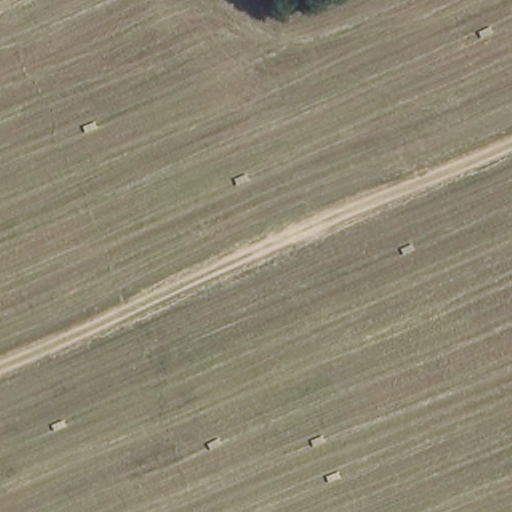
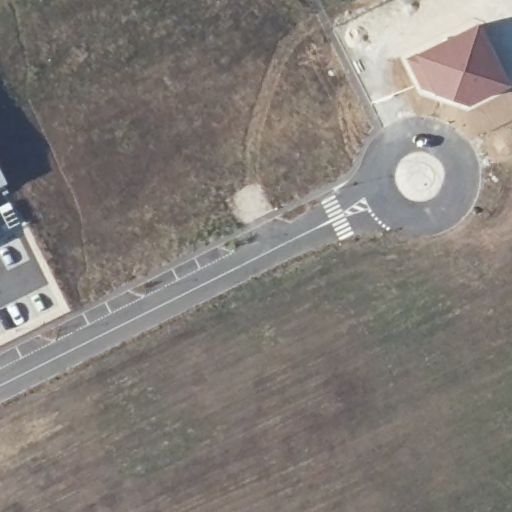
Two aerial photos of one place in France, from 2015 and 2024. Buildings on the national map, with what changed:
new [(480,19),(512,83),(512,87),(495,95),(467,105),(419,90),(403,56),(480,19)]
new [(0,186),(0,167),(8,182),(0,186)]

